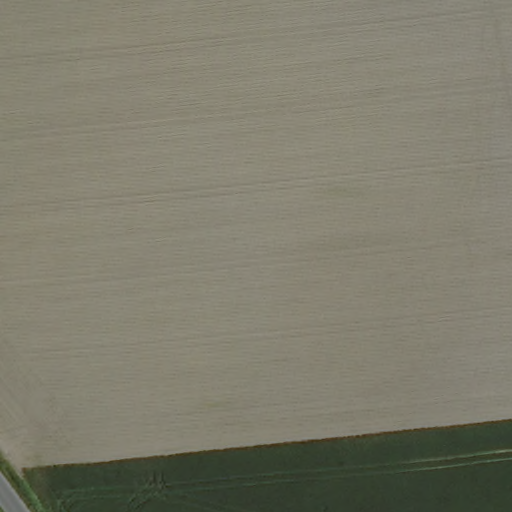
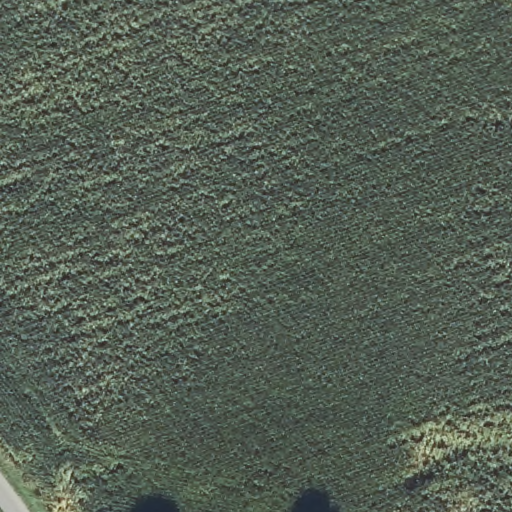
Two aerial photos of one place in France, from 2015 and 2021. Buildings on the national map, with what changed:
[]

